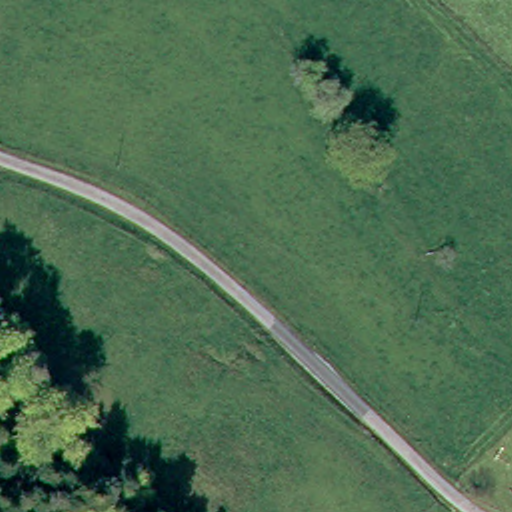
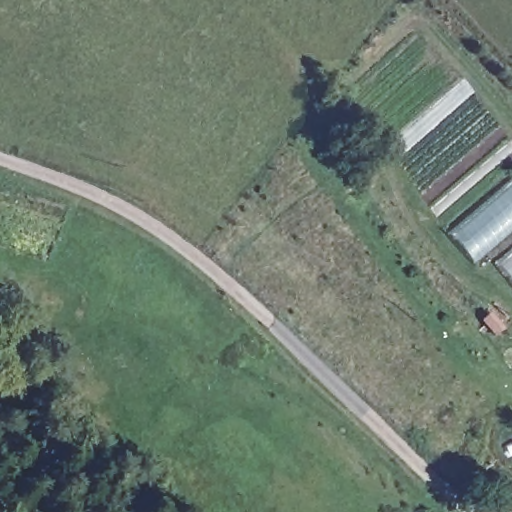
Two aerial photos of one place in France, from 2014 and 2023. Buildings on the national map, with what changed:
new [(498,265),(487,252),(475,262),(449,233),(512,179),(512,280),(498,265)]

